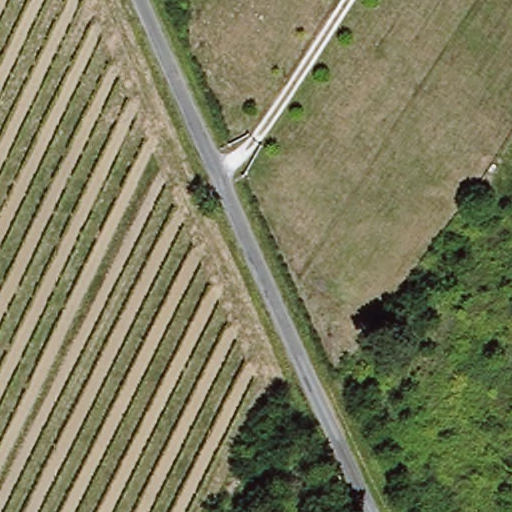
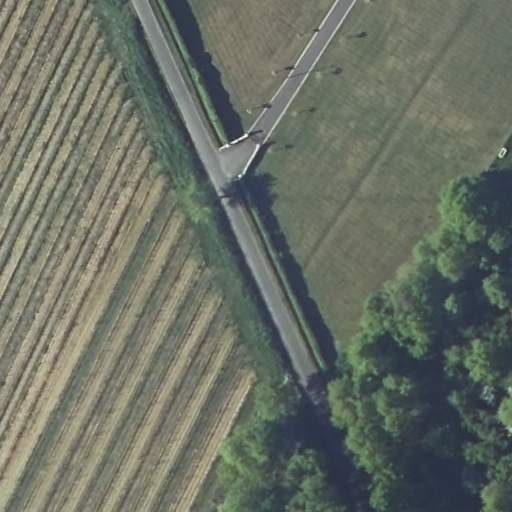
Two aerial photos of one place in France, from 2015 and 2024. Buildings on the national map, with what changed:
unchanged [(0,235),(0,218),(6,203),(24,211),(11,239),(0,235)]

